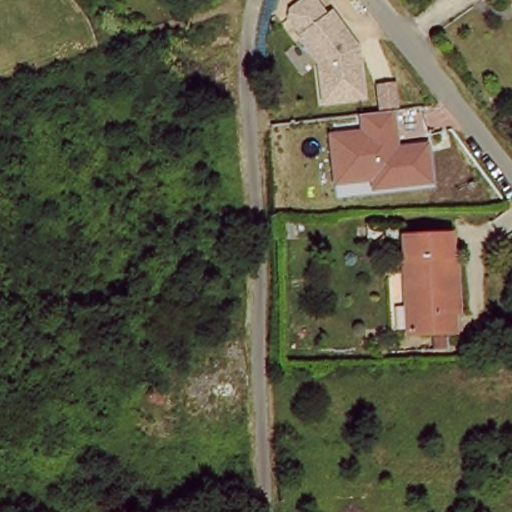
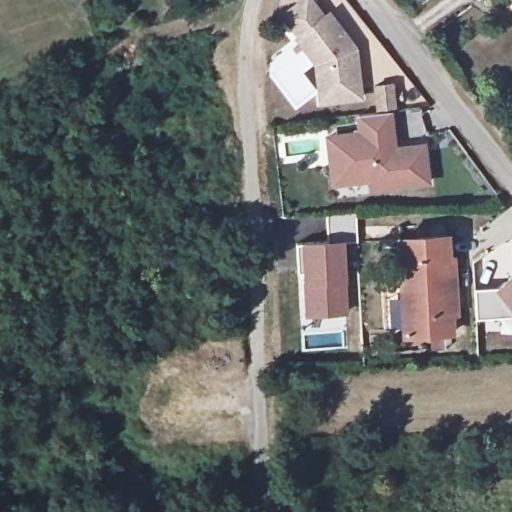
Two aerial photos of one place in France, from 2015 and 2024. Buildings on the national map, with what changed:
unchanged [(328,10),(356,50),(361,101),(315,105),(311,61),(288,35),(291,32),(277,14),(296,0),(314,0),(324,14),(328,10)]
unchanged [(325,135),(360,131),(358,116),(396,114),(399,148),(428,144),(433,185),(370,192),(370,184),(333,186),(325,135)]
new [(350,316),(303,319),(297,242),(327,239),(326,214),(355,212),(355,217),(336,219),(337,223),(338,223),(340,229),(350,230),(335,233),(335,239),(345,238),(350,316)]
unchanged [(409,286),(406,238),(452,237),(453,282),(409,286)]
new [(512,274),(512,317),(475,319),(472,287),(496,285),(512,274)]
unchanged [(453,282),(455,330),(407,331),(409,286),(453,282)]

